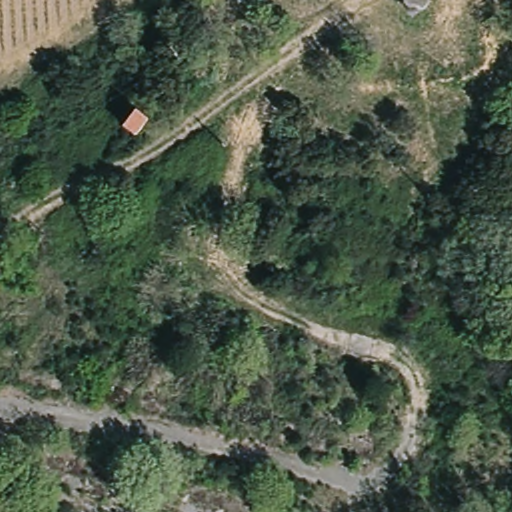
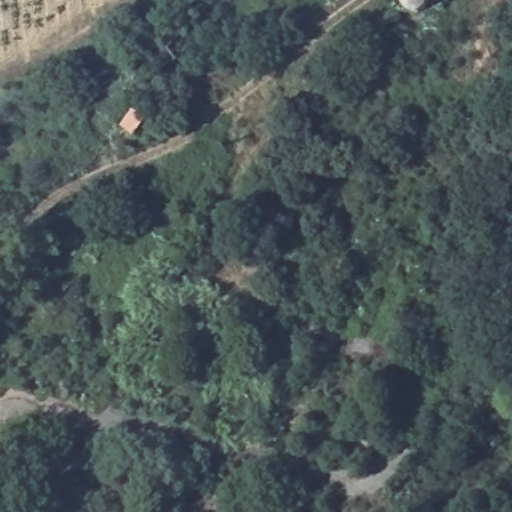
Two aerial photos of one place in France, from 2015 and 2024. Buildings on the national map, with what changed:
[]

